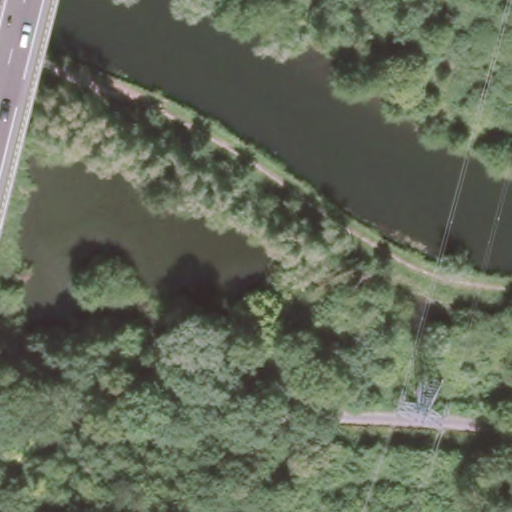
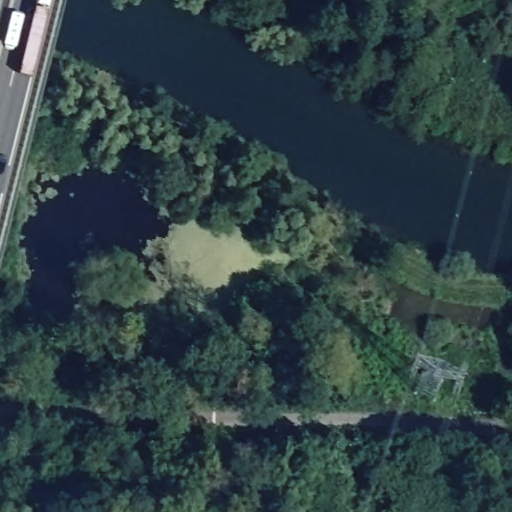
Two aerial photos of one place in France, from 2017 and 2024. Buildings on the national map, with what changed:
unchanged [(250,328),(256,305),(301,318),(294,341),(250,328)]

